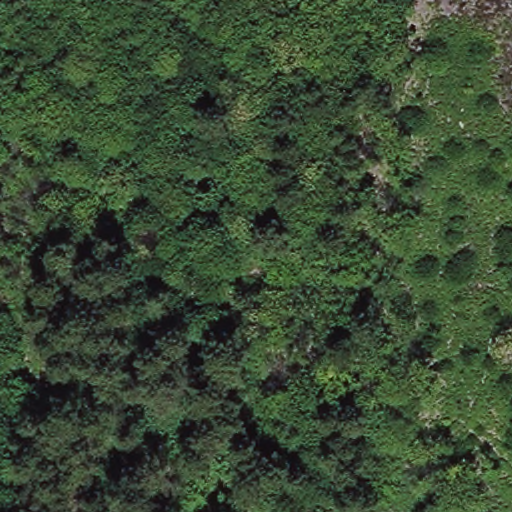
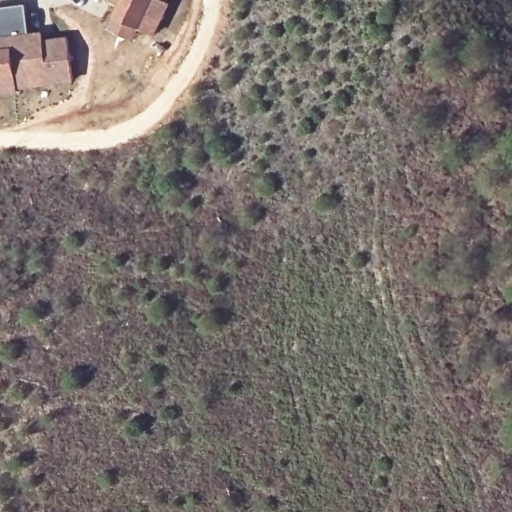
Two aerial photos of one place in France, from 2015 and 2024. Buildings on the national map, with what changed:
new [(117,3),(113,0),(169,0),(153,37),(138,30),(132,41),(105,26),(117,3)]
new [(25,3),(29,32),(0,35),(0,7),(25,3)]
new [(29,32),(42,31),(44,39),(67,36),(72,83),(0,95),(0,35),(29,32)]

